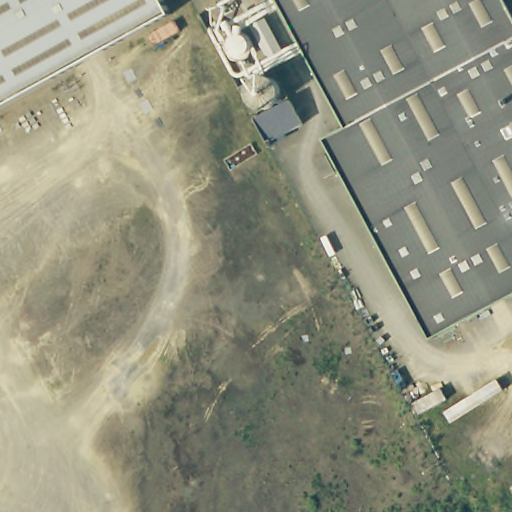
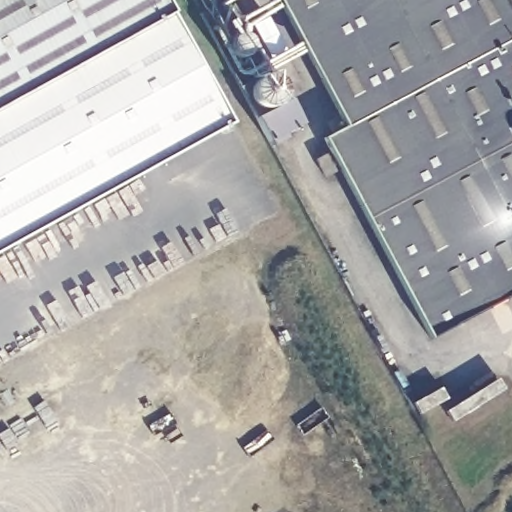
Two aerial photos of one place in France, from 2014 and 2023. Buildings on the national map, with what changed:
unchanged [(160,0),(168,15),(0,107),(0,0),(160,0)]
unchanged [(325,144),(345,134),(273,0),(501,0),(512,20),(512,302),(431,345),(325,144)]
unchanged [(512,0),(512,20),(501,0),(512,0)]
new [(168,15),(230,122),(0,250),(0,107),(168,15)]
unchanged [(270,143),(258,116),(290,97),(302,126),(270,143)]
unchanged [(338,183),(327,189),(320,174),(330,168),(338,183)]

